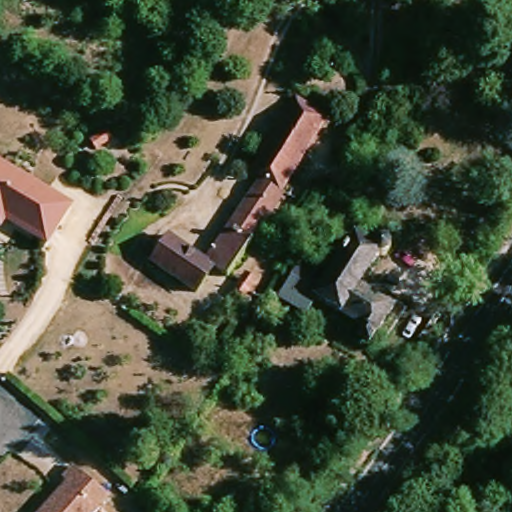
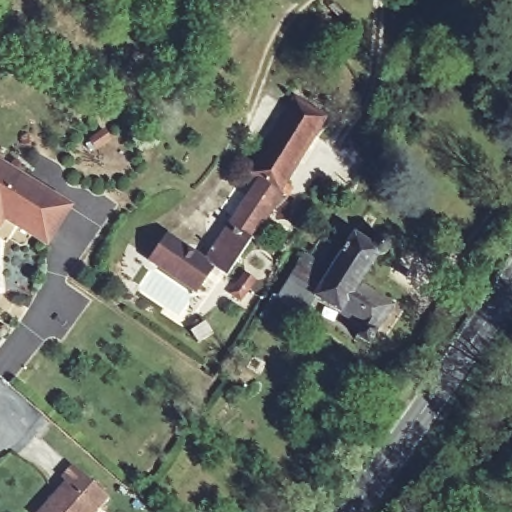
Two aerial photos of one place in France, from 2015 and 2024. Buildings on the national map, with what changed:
unchanged [(271,127),(297,89),(337,112),(314,151),(271,127)]
unchanged [(155,272),(181,239),(208,257),(247,211),(264,182),(244,168),(271,127),(314,151),(271,222),(229,281),(218,273),(195,302),(155,272)]
unchanged [(6,221),(0,230),(0,159),(76,204),(50,247),(6,221)]
unchanged [(375,238),(386,231),(391,231),(397,234),(397,241),(382,253),(364,282),(400,302),(383,333),(389,337),(380,351),(361,340),(365,331),(319,304),(310,318),(275,302),(305,252),(336,265),(358,230),(375,238)]
unchanged [(112,496),(97,512),(38,512),(78,466),(112,496)]

